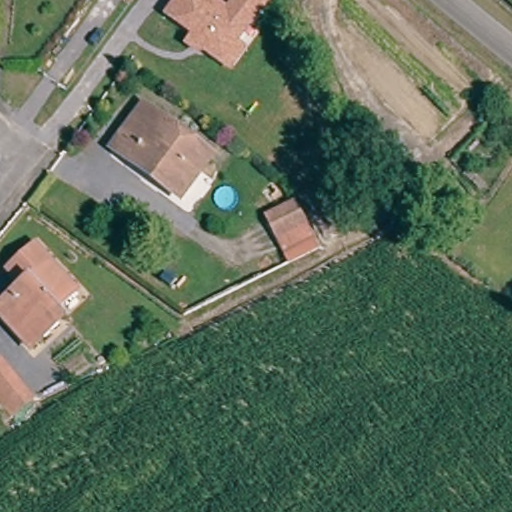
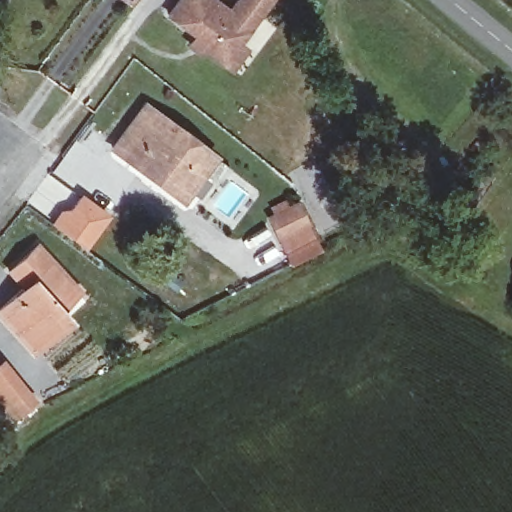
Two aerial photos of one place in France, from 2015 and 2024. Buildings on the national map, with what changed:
unchanged [(130,5),(124,0),(133,0),(130,5)]
unchanged [(226,62),(210,51),(202,52),(192,45),(199,36),(171,16),(183,0),(214,0),(231,12),(240,0),(271,0),(260,15),(239,44),(249,51),(236,70),(226,62)]
unchanged [(221,158),(194,197),(158,172),(152,180),(129,164),(135,155),(121,143),(148,108),(221,158)]
new [(86,249),(50,223),(81,195),(110,216),(86,249)]
unchanged [(310,233),(280,248),(268,226),(297,211),(310,233)]
unchanged [(86,291),(62,320),(69,327),(44,358),(6,326),(36,289),(20,275),(40,251),(86,291)]
unchanged [(7,362),(29,390),(42,406),(41,407),(19,418),(7,431),(0,421),(0,368),(7,362)]

